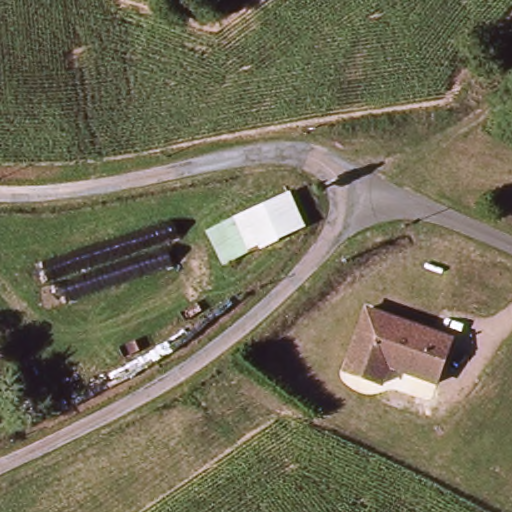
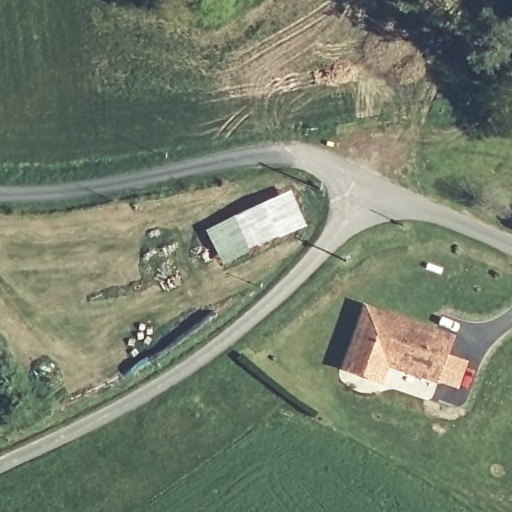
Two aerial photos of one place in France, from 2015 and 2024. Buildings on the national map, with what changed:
unchanged [(306,228),(250,254),(232,217),(289,193),(306,228)]
unchanged [(250,254),(224,267),(206,231),(232,217),(250,254)]
unchanged [(455,341),(438,388),(387,370),(380,389),(344,376),(367,312),(455,341)]

